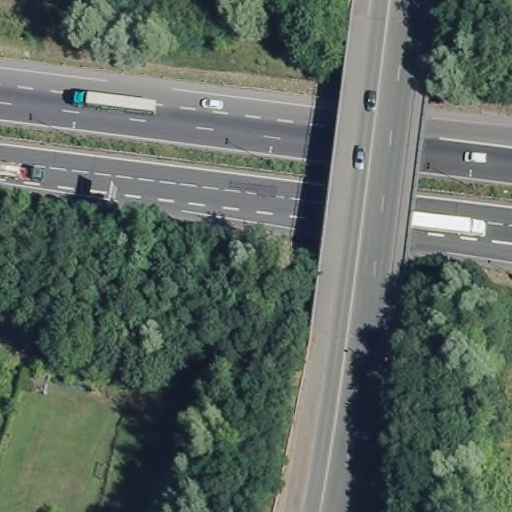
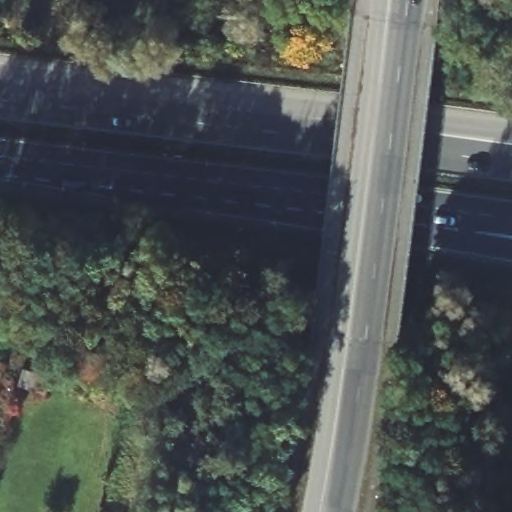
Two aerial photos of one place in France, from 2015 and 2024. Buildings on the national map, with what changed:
unchanged [(41,396),(14,389),(19,371),(27,373),(46,378),(45,381),(44,384),(41,396)]

